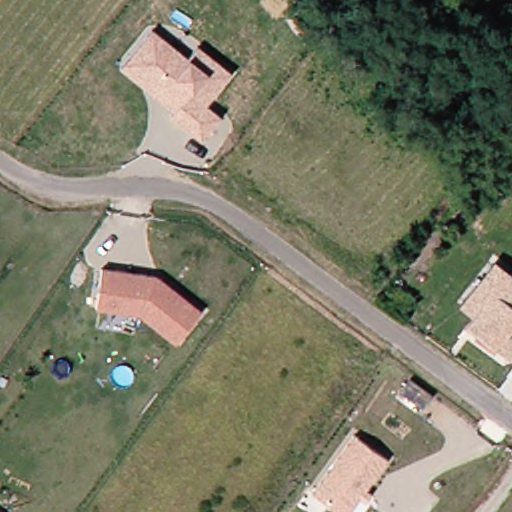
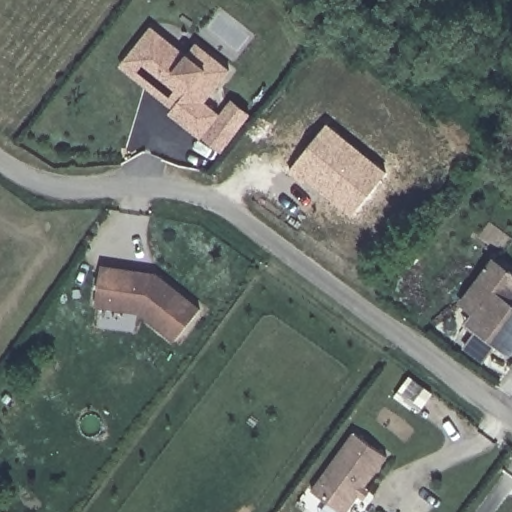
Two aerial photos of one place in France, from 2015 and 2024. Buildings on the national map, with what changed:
unchanged [(187,54),(200,38),(234,71),(212,100),(223,110),(201,138),(169,118),(173,111),(119,70),(154,26),(187,54)]
new [(223,110),(232,99),(252,114),(223,153),(201,138),(223,110)]
new [(291,170),(328,123),(388,172),(353,217),(291,170)]
unchanged [(512,344),(510,347),(494,336),(489,343),(471,329),(478,321),(469,315),(489,290),(477,280),(492,257),(507,269),(512,273),(512,288),(506,296),(512,301),(512,344)]
unchanged [(176,338),(139,310),(99,306),(102,265),(158,272),(201,305),(176,338)]
unchanged [(353,433),(384,456),(347,512),(345,512),(313,491),(353,433)]

